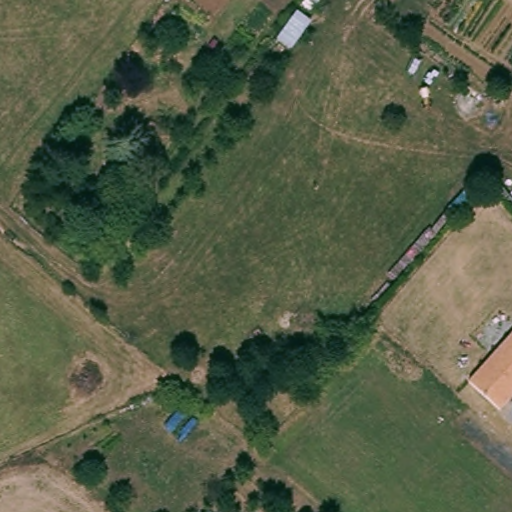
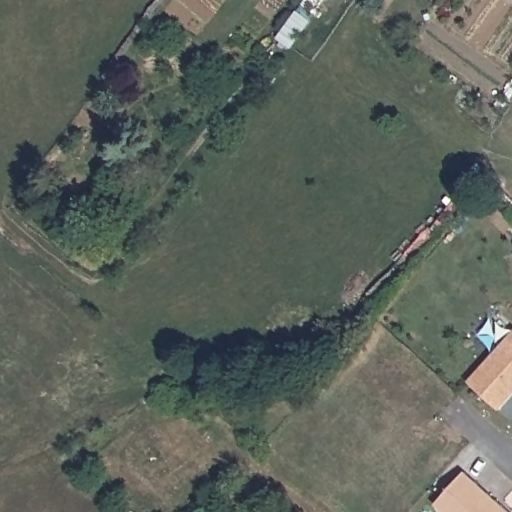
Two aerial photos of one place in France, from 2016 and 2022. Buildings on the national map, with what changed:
unchanged [(512,331),(512,396),(498,411),(466,380),(512,331)]
new [(464,472),(510,512),(442,512),(434,505),(464,472)]

